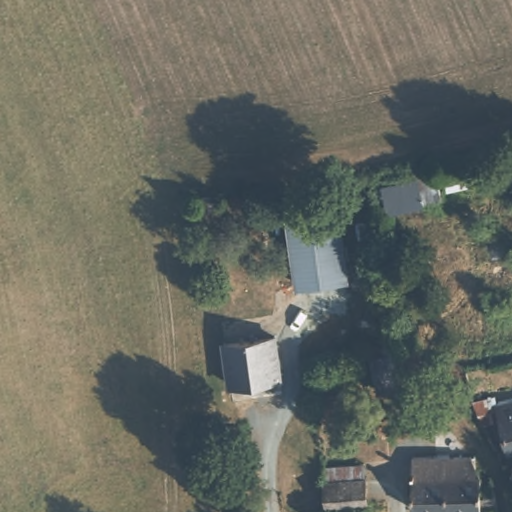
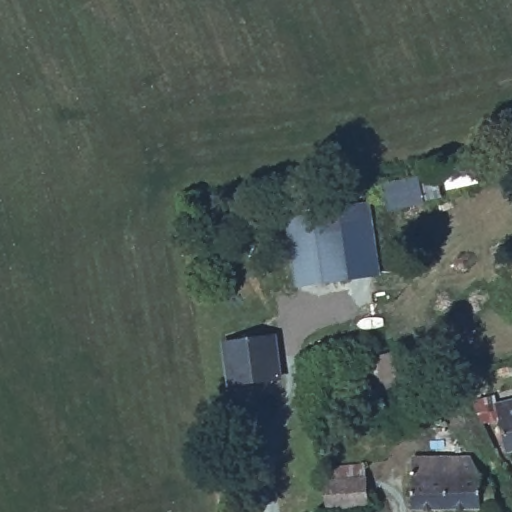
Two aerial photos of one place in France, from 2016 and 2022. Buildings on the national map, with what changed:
unchanged [(493,179),(449,189),(444,170),(490,161),(493,179)]
unchanged [(430,197),(396,204),(395,199),(386,200),(383,182),(426,172),(430,197)]
new [(340,205),(371,200),(382,275),(350,280),(340,205)]
unchanged [(288,209),(286,231),(245,225),(246,205),(288,209)]
unchanged [(294,287),(286,231),(288,212),(340,205),(350,280),(294,287)]
unchanged [(221,343),(277,336),(283,378),(227,386),(221,343)]
unchanged [(405,391),(378,395),(371,355),(394,351),(405,391)]
unchanged [(499,400),(512,397),(512,447),(506,448),(501,416),(483,420),(475,400),(497,395),(499,400)]
unchanged [(412,511),(410,456),(467,453),(489,482),(497,507),(412,511)]
unchanged [(366,460),(370,505),(312,510),(307,478),(325,476),(324,461),(366,460)]

